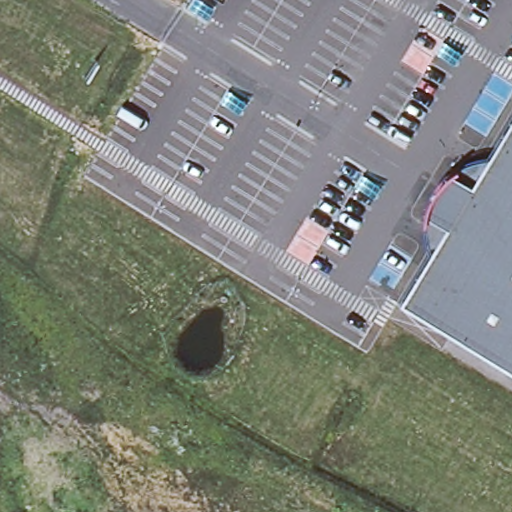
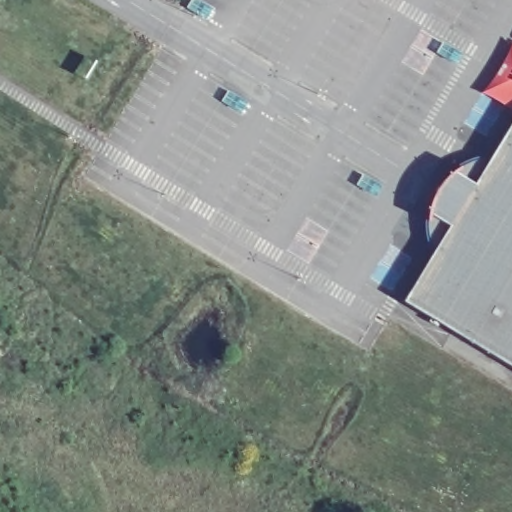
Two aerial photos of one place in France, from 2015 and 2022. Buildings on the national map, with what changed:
unchanged [(404,300),(436,247),(430,229),(429,215),(430,205),(436,193),(442,182),(456,170),(469,163),(490,158),(512,121),(512,367),(404,300)]

